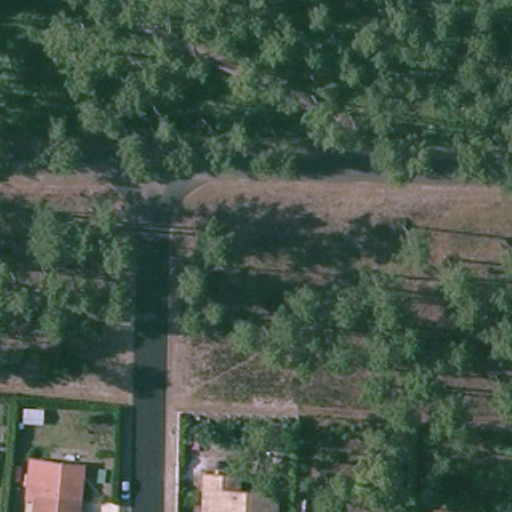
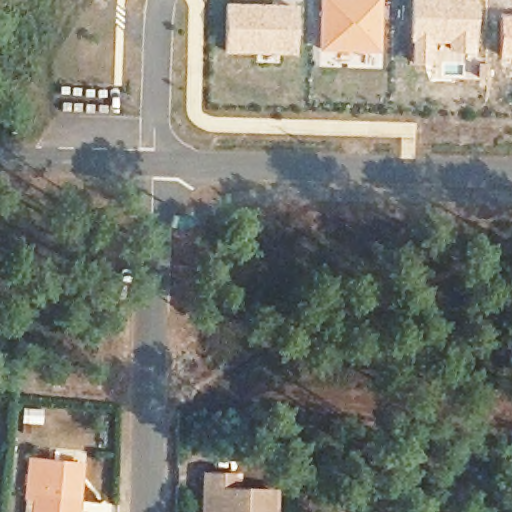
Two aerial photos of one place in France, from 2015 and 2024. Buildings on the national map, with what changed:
new [(381,53),(320,50),(321,0),(382,0),(381,53)]
new [(429,66),(412,66),(412,0),(476,0),(475,19),(461,30),(474,53),(448,52),(448,42),(431,42),(429,66)]
new [(297,5),(295,55),(224,54),(225,4),(297,5)]
new [(498,57),(499,16),(512,16),(512,58),(498,57)]
unchanged [(25,493),(27,458),(70,460),(69,480),(78,480),(76,512),(29,512),(30,494),(25,493)]
unchanged [(240,480),(240,497),(276,500),(275,512),(207,512),(208,479),(240,480)]

